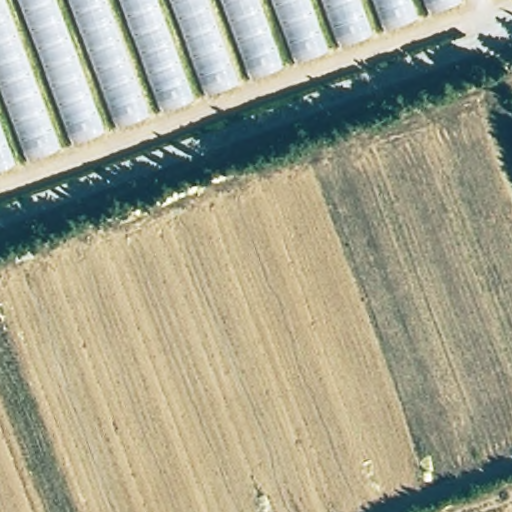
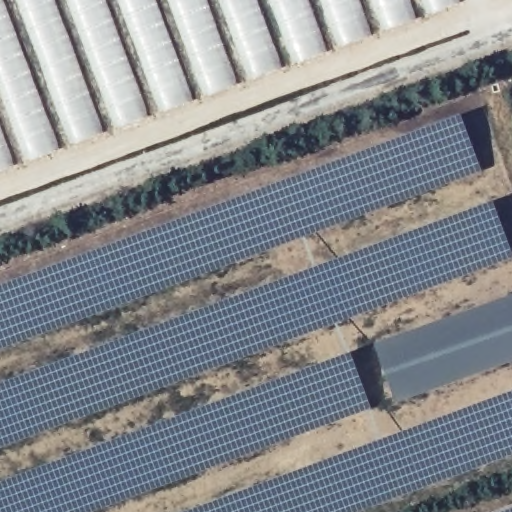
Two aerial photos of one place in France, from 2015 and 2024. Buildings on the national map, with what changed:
unchanged [(0,174),(0,0),(476,0),(0,174)]
new [(482,172),(0,350),(0,285),(461,115),(482,172)]
demolished [(436,150),(484,128),(512,197),(512,512),(0,512),(0,288),(427,134),(436,150)]
new [(0,383),(493,201),(512,254),(512,259),(0,448),(0,383)]
new [(396,403),(374,343),(512,294),(512,362),(396,403)]
new [(372,408),(93,512),(0,512),(0,481),(351,352),(372,408)]
new [(183,512),(512,390),(512,455),(358,512),(183,512)]
new [(500,512),(512,508),(512,512),(500,512)]

